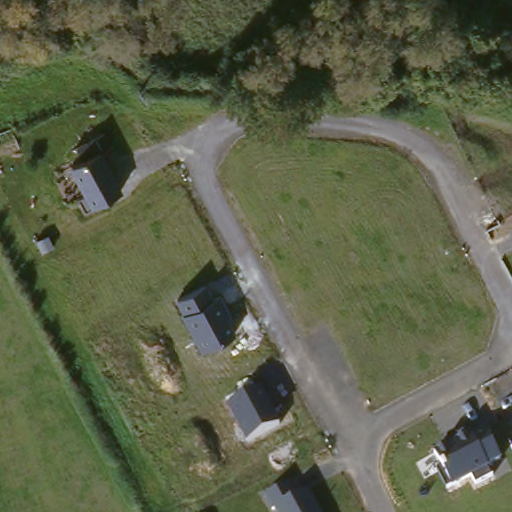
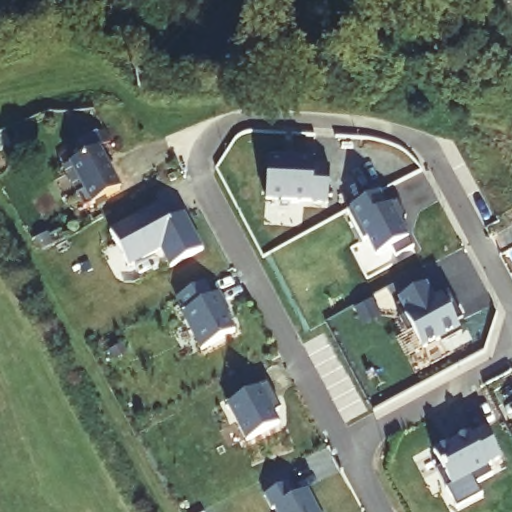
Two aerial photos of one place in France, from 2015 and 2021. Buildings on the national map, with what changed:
unchanged [(91,207),(69,168),(99,150),(121,191),(91,207)]
new [(267,164),(312,166),(312,171),(328,172),(326,207),(265,204),(267,164)]
new [(379,194),(389,209),(398,204),(406,220),(403,227),(414,248),(397,258),(393,251),(376,259),(369,244),(366,245),(349,212),(379,194)]
new [(177,230),(191,222),(197,231),(211,257),(179,275),(170,257),(138,274),(119,240),(168,212),(177,230)]
unchanged [(203,352),(176,298),(208,281),(236,333),(203,352)]
new [(434,301),(448,294),(462,321),(457,323),(464,335),(444,346),(441,342),(423,351),(404,318),(407,316),(400,303),(428,287),(434,301)]
unchanged [(246,444),(228,405),(262,388),(281,425),(246,444)]
unchanged [(488,466),(494,476),(476,485),(471,476),(450,487),(433,453),(484,426),(502,460),(488,466)]
unchanged [(289,483),(296,496),(308,491),(320,512),(275,512),(266,496),(289,483)]

